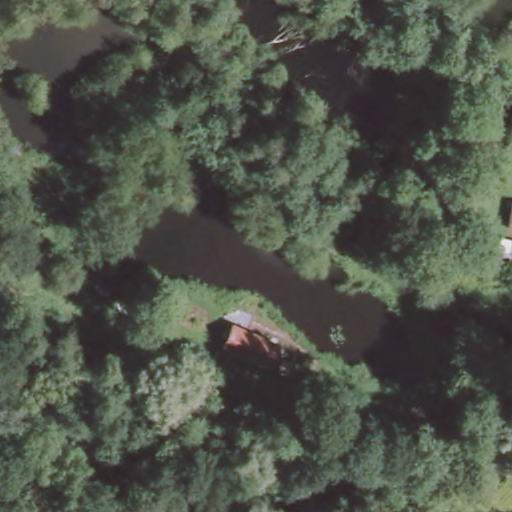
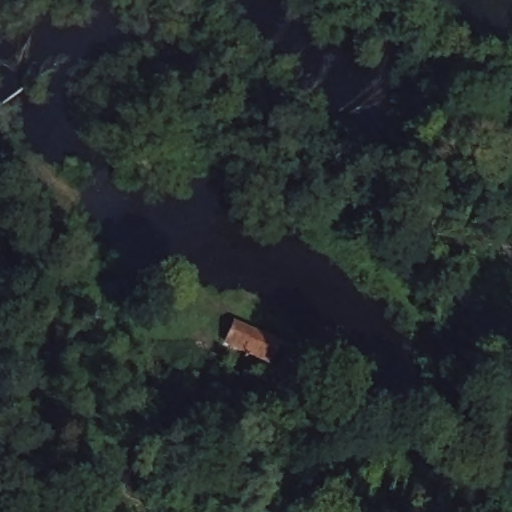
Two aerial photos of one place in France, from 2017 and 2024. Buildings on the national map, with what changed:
unchanged [(512,205),(512,236),(502,235),(509,205),(512,205)]
unchanged [(222,348),(231,322),(277,341),(270,363),(222,348)]

